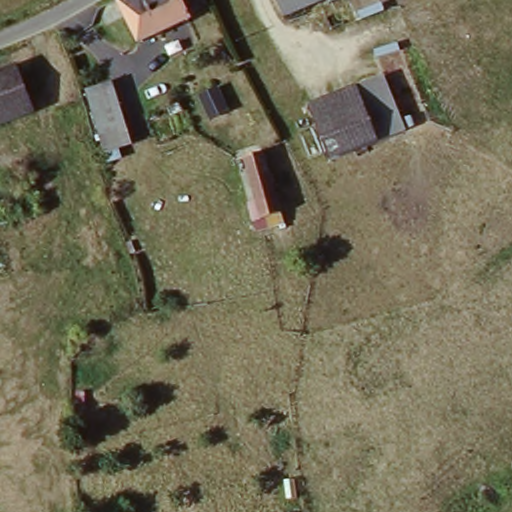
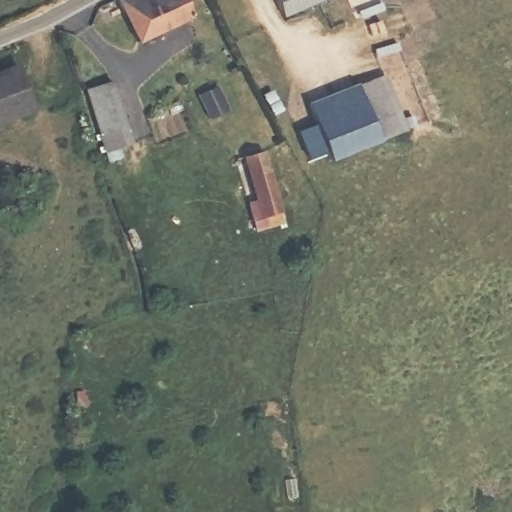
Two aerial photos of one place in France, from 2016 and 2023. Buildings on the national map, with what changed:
unchanged [(127,0),(164,0),(166,2),(170,0),(178,0),(189,21),(138,45),(125,20),(118,5),(127,0)]
unchanged [(269,0),(332,0),(278,23),(269,0)]
unchanged [(0,126),(0,78),(18,71),(34,113),(0,126)]
unchanged [(383,76),(404,133),(332,161),(311,104),(383,76)]
unchanged [(103,153),(97,136),(96,133),(84,94),(112,85),(127,123),(134,141),(103,153)]
unchanged [(284,225),(272,228),(265,208),(255,210),(239,160),(264,153),(284,225)]

